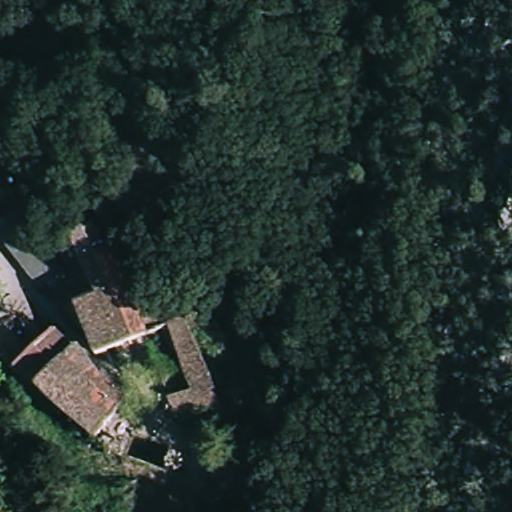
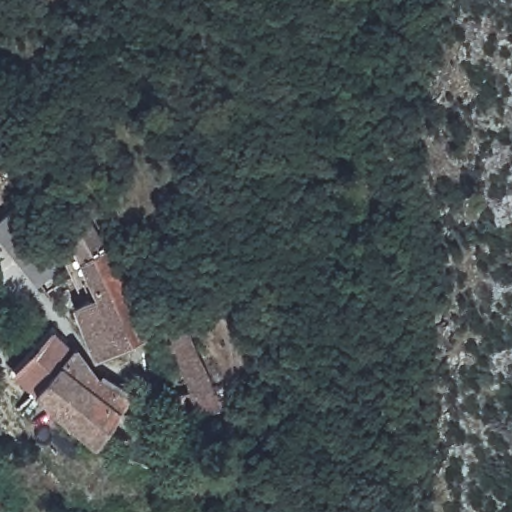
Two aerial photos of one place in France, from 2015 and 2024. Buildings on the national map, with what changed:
unchanged [(23,204),(43,234),(17,251),(0,226),(0,219),(23,204)]
unchanged [(91,300),(76,263),(100,249),(103,252),(112,265),(120,279),(124,294),(137,337),(90,357),(68,309),(91,300)]
unchanged [(171,399),(193,393),(171,323),(170,318),(182,312),(211,372),(221,406),(198,411),(176,416),(171,399)]
unchanged [(33,387),(14,366),(52,330),(72,348),(33,387)]
unchanged [(109,381),(113,378),(130,391),(94,439),(57,414),(33,387),(72,348),(75,347),(109,381)]

